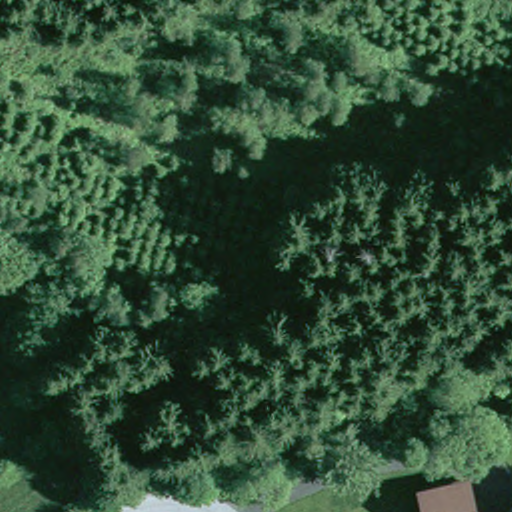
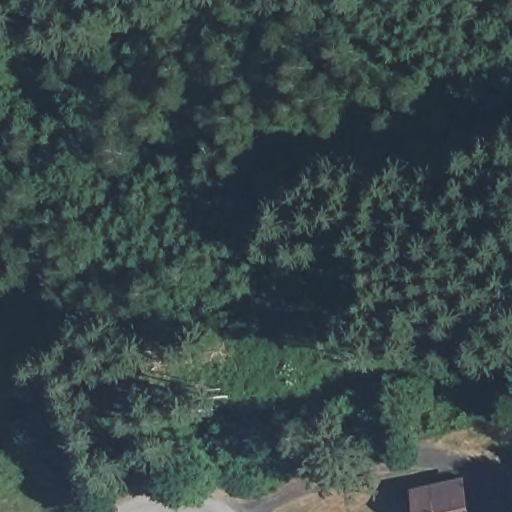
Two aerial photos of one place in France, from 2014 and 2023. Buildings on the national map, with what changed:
unchanged [(464,512),(423,512),(421,507),(418,495),(457,485),(457,487),(464,512)]

